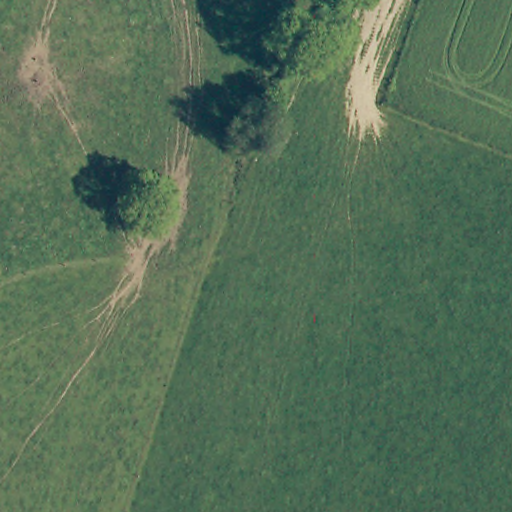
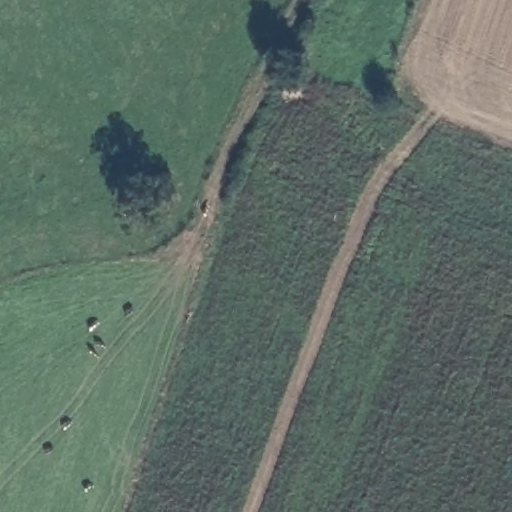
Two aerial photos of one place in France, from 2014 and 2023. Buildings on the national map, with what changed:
[]

